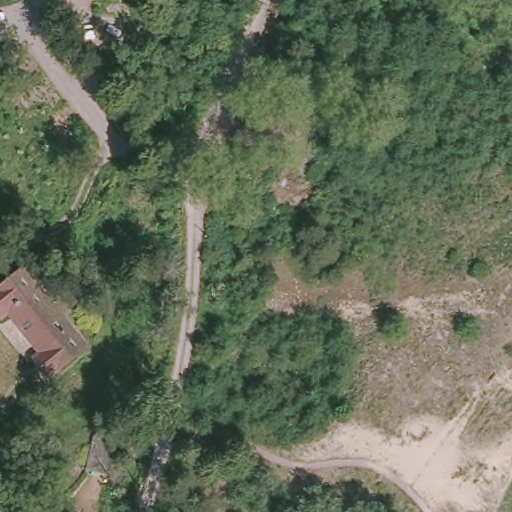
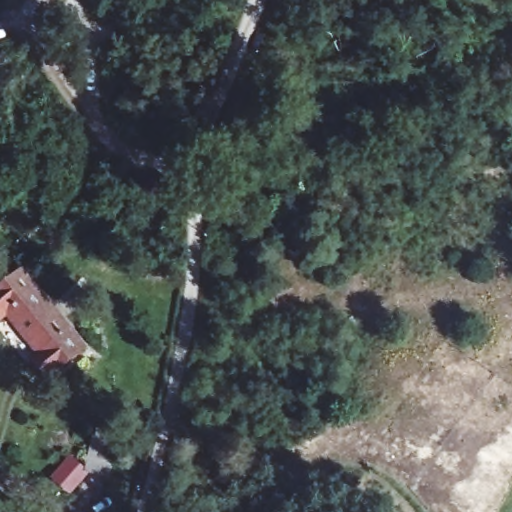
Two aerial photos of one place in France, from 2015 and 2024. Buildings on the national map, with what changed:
unchanged [(91,345),(52,376),(36,355),(44,349),(8,305),(0,310),(0,279),(25,260),(91,345)]
unchanged [(113,471),(90,468),(97,432),(119,436),(113,471)]

